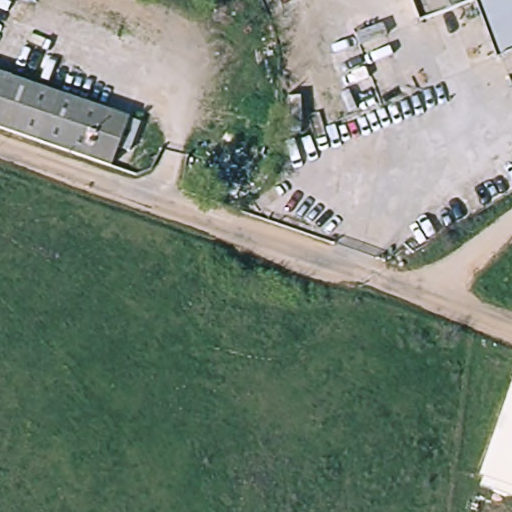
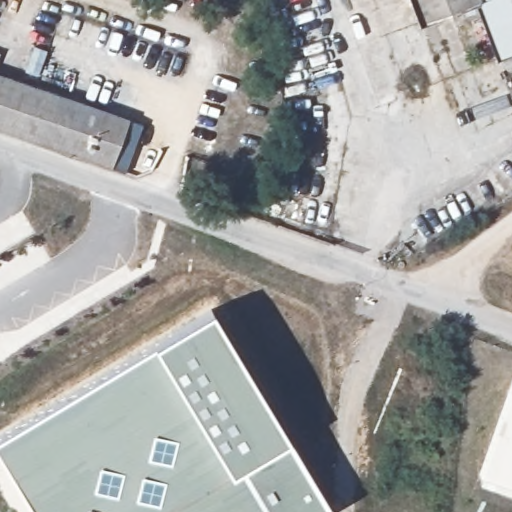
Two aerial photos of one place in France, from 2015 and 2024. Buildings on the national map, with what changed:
unchanged [(422,21),(414,0),(478,0),(422,21)]
unchanged [(480,0),(512,0),(512,23),(494,34),(480,0)]
unchanged [(503,57),(494,34),(512,23),(512,53),(503,57)]
unchanged [(111,166),(0,128),(0,72),(128,117),(111,166)]
new [(307,512),(30,512),(0,464),(0,434),(188,321),(307,512)]
unchanged [(480,472),(512,377),(512,484),(480,472)]

